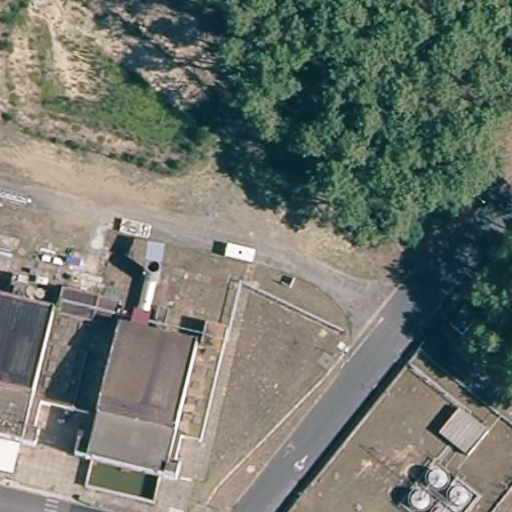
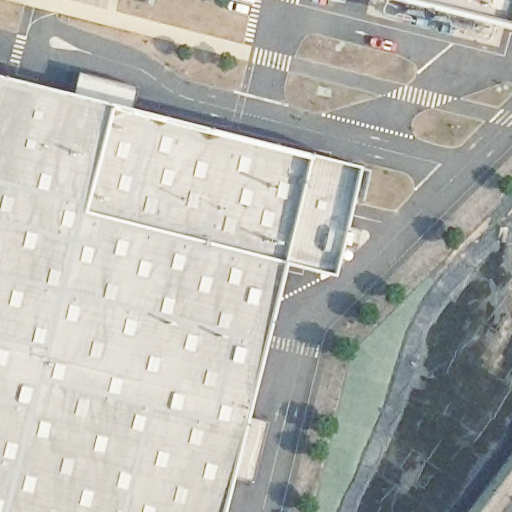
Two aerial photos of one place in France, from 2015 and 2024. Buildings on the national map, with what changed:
new [(512,0),(512,31),(391,0),(512,0)]
new [(327,274),(277,263),(215,512),(0,512),(0,78),(352,167),(327,274)]
demolished [(38,393),(29,434),(19,432),(14,456),(0,453),(0,286),(50,297),(55,276),(95,284),(71,398),(38,391),(38,393)]
demolished [(183,423),(182,424),(173,466),(165,464),(160,488),(82,470),(87,447),(77,444),(86,402),(71,398),(95,284),(125,291),(120,313),(203,331),(208,308),(232,314),(207,429),(183,423)]
demolished [(462,333),(447,321),(463,304),(474,314),(462,333)]
demolished [(437,434),(457,409),(485,432),(466,456),(437,434)]
demolished [(394,447),(390,449),(384,449),(380,447),(378,442),(380,437),(384,433),(390,433),(394,437),(396,442),(394,447)]
demolished [(369,475),(364,475),(359,472),(358,466),(360,461),(364,458),(370,458),(374,462),(376,467),(374,472),(369,475)]
demolished [(471,507),(467,510),(461,509),(457,506),(456,500),(458,495),(463,493),(468,493),(472,497),(474,502),(471,507)]

